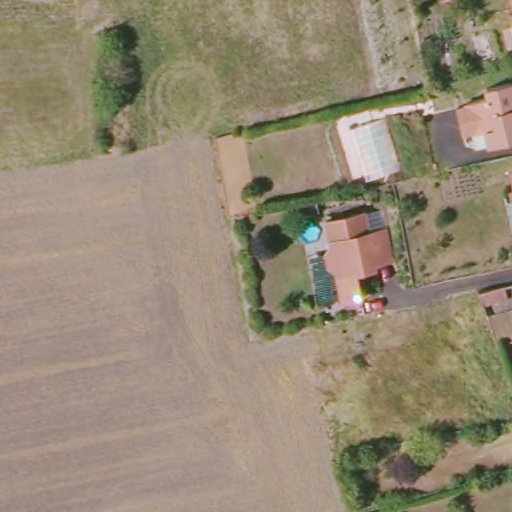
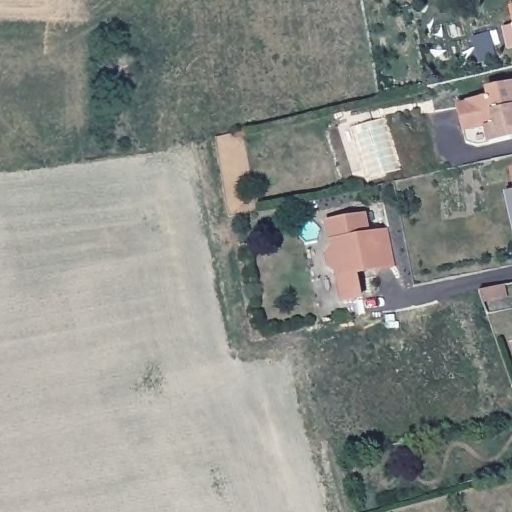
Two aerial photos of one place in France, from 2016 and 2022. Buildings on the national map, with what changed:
unchanged [(511,0),(512,0),(512,6),(511,0)]
unchanged [(508,12),(512,12),(512,30),(508,12)]
unchanged [(450,105),(462,102),(478,99),(477,91),(512,84),(512,141),(495,145),(491,131),(470,135),(469,132),(456,135),(450,105)]
unchanged [(365,216),(370,237),(386,234),(391,264),(375,268),(376,273),(336,281),(335,275),(328,272),(325,255),(330,250),(324,224),(365,216)]

